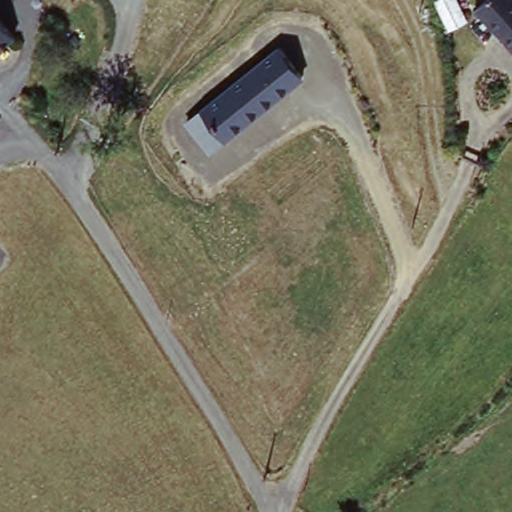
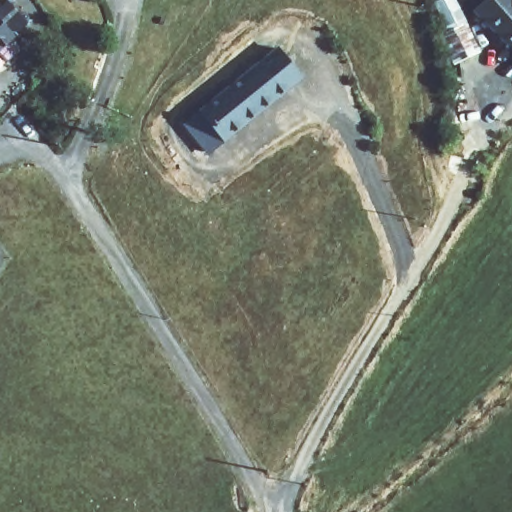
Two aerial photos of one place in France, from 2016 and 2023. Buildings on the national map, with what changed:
unchanged [(449,0),(464,0),(475,26),(452,35),(437,5),(449,0)]
unchanged [(493,0),(512,0),(512,43),(481,11),(493,0)]
unchanged [(18,45),(0,61),(0,23),(18,45)]
unchanged [(201,110),(281,47),(305,79),(210,152),(186,125),(201,110)]

